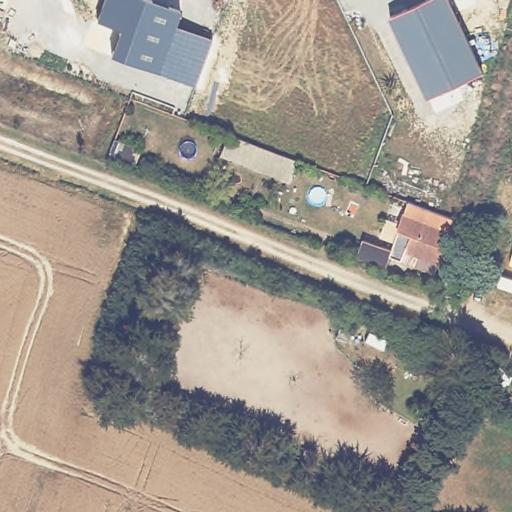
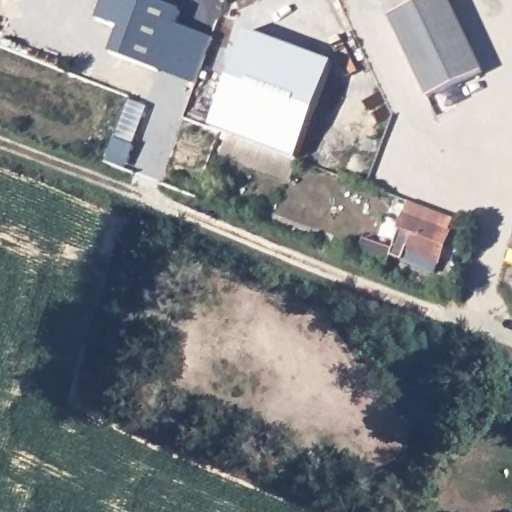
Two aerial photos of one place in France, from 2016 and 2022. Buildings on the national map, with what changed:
unchanged [(120,30),(96,20),(104,0),(145,0),(180,12),(175,25),(212,39),(196,85),(110,55),(120,30)]
unchanged [(447,0),(480,72),(426,100),(388,17),(427,0),(447,0)]
new [(211,127),(247,30),(335,62),(299,161),(231,134),(230,134),(211,127)]
unchanged [(292,182),(223,155),(230,134),(299,161),(292,182)]
unchanged [(88,160),(96,141),(123,153),(116,172),(88,160)]
unchanged [(354,250),(361,230),(391,241),(407,196),(453,215),(434,267),(388,250),(383,262),(354,250)]

